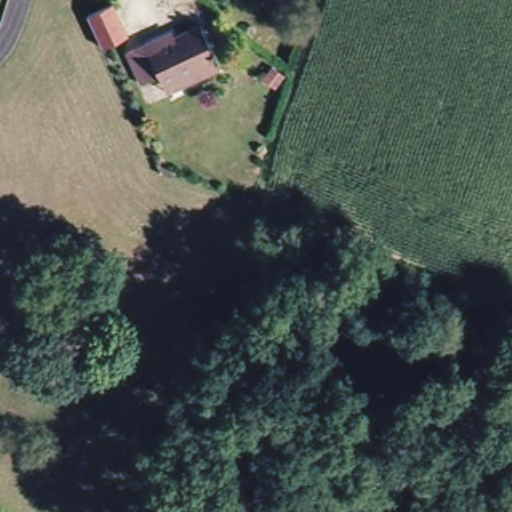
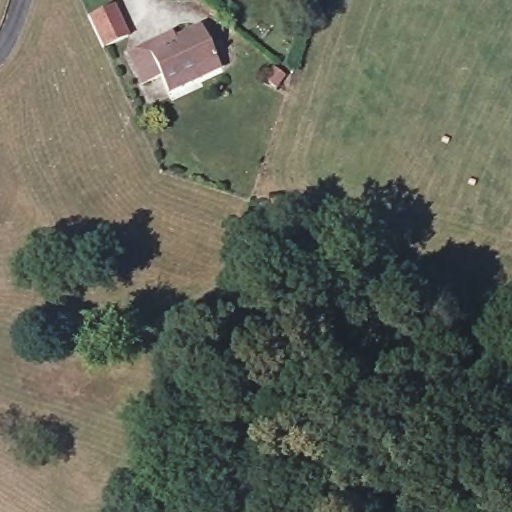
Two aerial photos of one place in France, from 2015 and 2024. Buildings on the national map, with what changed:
unchanged [(128,37),(103,49),(88,17),(113,5),(128,37)]
unchanged [(168,87),(159,69),(141,77),(128,49),(146,41),(171,30),(173,34),(202,21),(221,62),(168,87)]

